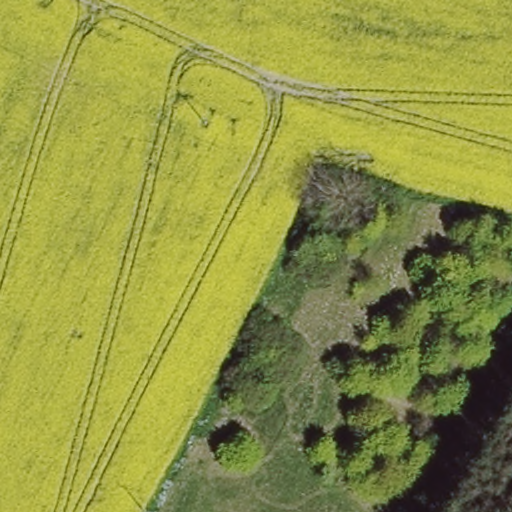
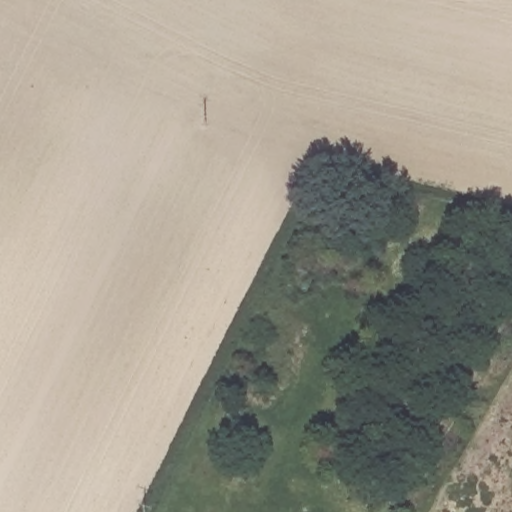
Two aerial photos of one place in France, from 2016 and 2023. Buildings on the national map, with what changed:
[]

